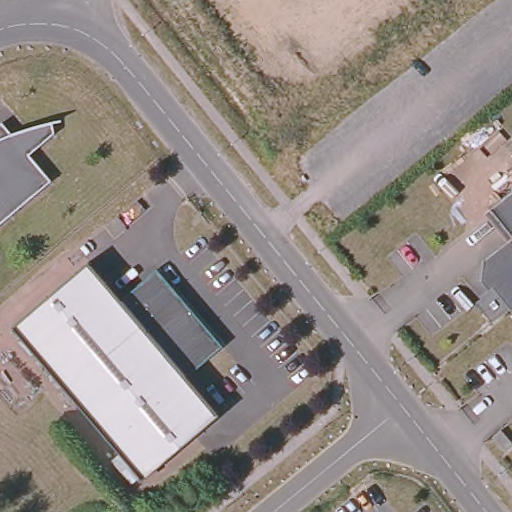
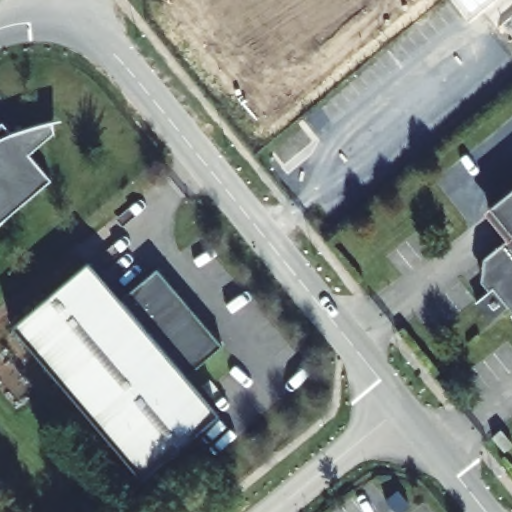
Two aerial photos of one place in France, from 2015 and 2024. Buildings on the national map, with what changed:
unchanged [(59,128),(33,149),(56,175),(0,223),(0,123),(6,117),(16,128),(35,121),(57,115),(59,128)]
unchanged [(482,259),(511,236),(489,208),(512,190),(512,316),(508,311),(508,310),(480,275),(482,259)]
unchanged [(125,299),(161,268),(228,346),(191,377),(223,415),(146,480),(16,327),(93,261),(125,299)]
unchanged [(494,433),(507,448),(499,454),(486,440),(494,433)]

